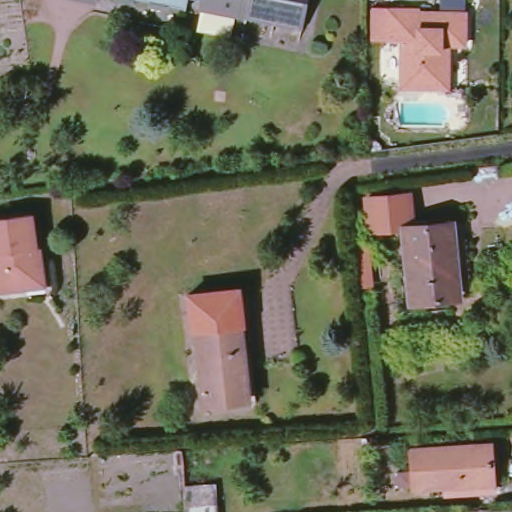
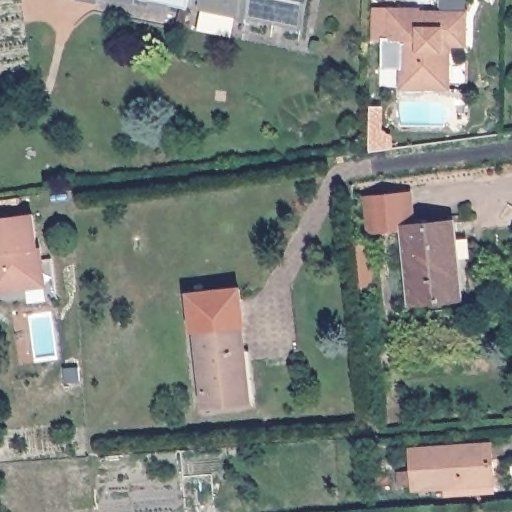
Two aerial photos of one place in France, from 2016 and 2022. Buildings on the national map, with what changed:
unchanged [(165,0),(187,0),(187,4),(165,0)]
unchanged [(200,1),(200,0),(307,0),(303,22),(200,1)]
unchanged [(441,87),(402,87),(402,40),(389,40),(389,9),(420,9),(420,12),(465,13),(465,44),(449,44),(448,88),(441,87)]
unchanged [(450,294),(406,298),(398,222),(365,225),(362,193),(404,189),(407,221),(448,217),(452,254),(456,294),(450,294)]
unchanged [(27,288),(0,292),(0,218),(33,214),(38,248),(41,247),(44,273),(46,286),(27,288)]
unchanged [(366,245),(370,285),(362,285),(358,245),(366,245)]
unchanged [(198,332),(193,333),(189,294),(240,288),(244,327),(242,327),(247,376),(244,376),(247,401),(206,406),(198,332)]
unchanged [(417,450),(496,444),(500,491),(471,493),(471,485),(419,489),(419,487),(404,488),(403,472),(418,471),(417,450)]
unchanged [(184,486),(210,484),(211,505),(217,505),(217,512),(186,512),(184,486)]

